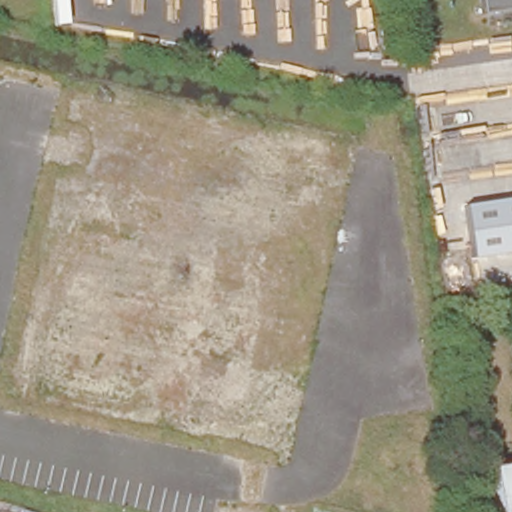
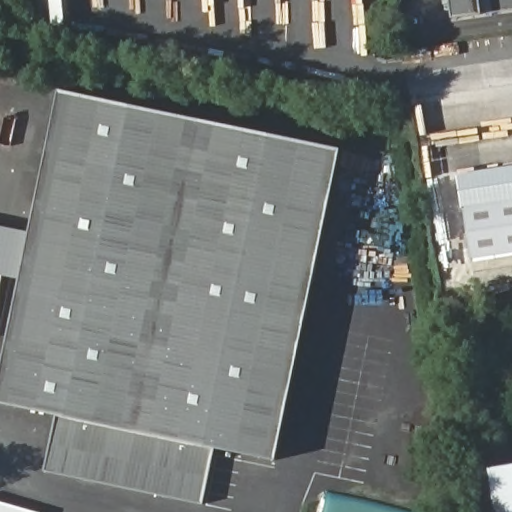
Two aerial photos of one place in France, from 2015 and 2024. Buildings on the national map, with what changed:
unchanged [(477,0),(512,0),(512,7),(479,12),(477,0)]
new [(276,463),(216,450),(54,415),(0,403),(0,370),(19,278),(28,233),(58,89),(342,148),(276,463)]
new [(457,175),(512,166),(512,197),(465,205),(466,208),(462,208),(457,175)]
unchanged [(512,252),(471,259),(465,205),(512,198),(512,252)]
new [(28,233),(19,278),(0,274),(0,227),(28,233)]
new [(43,470),(54,415),(216,450),(204,505),(43,470)]
unchanged [(512,454),(512,512),(503,512),(494,457),(512,454)]

